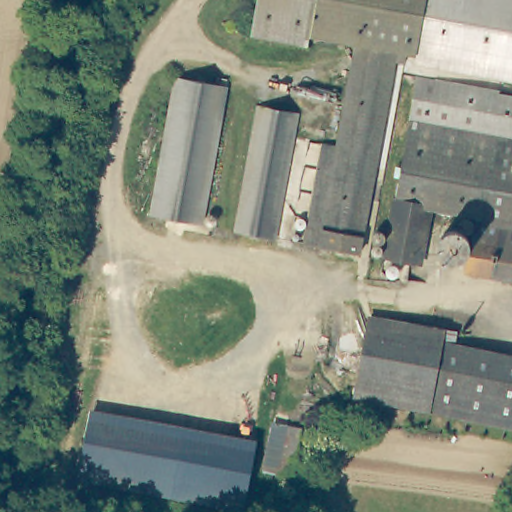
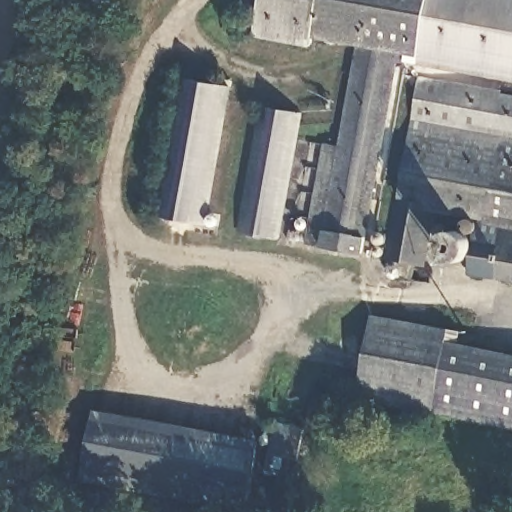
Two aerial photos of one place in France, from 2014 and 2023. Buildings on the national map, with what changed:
unchanged [(297,47),(240,36),(245,0),(512,0),(512,72),(420,57),(396,53),(356,45),(299,35),(297,47)]
unchanged [(396,53),(377,170),(386,172),(384,189),(374,188),(361,261),(308,251),(325,149),(339,151),(356,45),(396,53)]
unchanged [(512,72),(512,82),(439,70),(419,66),(420,57),(512,72)]
unchanged [(228,83),(205,227),(158,218),(180,74),(228,83)]
unchanged [(411,110),(417,78),(498,92),(498,96),(512,98),(512,124),(411,110)]
unchanged [(304,109),(283,240),(244,232),(265,102),(304,109)]
unchanged [(466,213),(429,210),(422,269),(387,264),(411,110),(512,124),(512,221),(466,213)]
unchanged [(512,221),(512,282),(457,275),(466,213),(512,221)]
unchanged [(444,231),(445,231),(447,231),(449,232),(450,233),(452,234),(453,235),(454,236),(455,238),(456,239),(456,241),(457,242),(457,244),(457,246),(456,248),(456,249),(455,251),(454,252),(453,254),(452,255),(451,256),(449,257),(448,258),(446,258),(444,259),(443,259),(441,258),(439,258),(438,257),(436,257),(435,256),(434,255),(433,253),(432,252),(431,250),(430,249),(430,247),(430,245),(430,243),(430,242),(431,240),(431,238),(432,237),(433,235),(434,234),(436,233),(437,232),(439,231),(440,231),(442,231),(444,231)]
unchanged [(430,354),(512,363),(512,425),(339,403),(344,366),(348,326),(358,327),(431,335),(430,354)]
unchanged [(257,440),(249,492),(245,509),(79,484),(83,464),(91,410),(257,440)]
unchanged [(273,423),(302,428),(291,478),(262,471),(273,423)]

